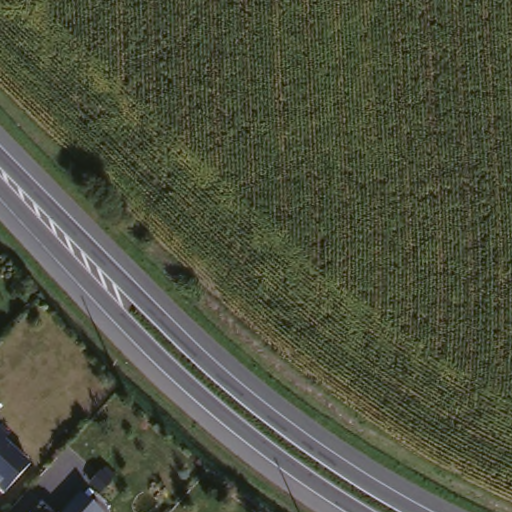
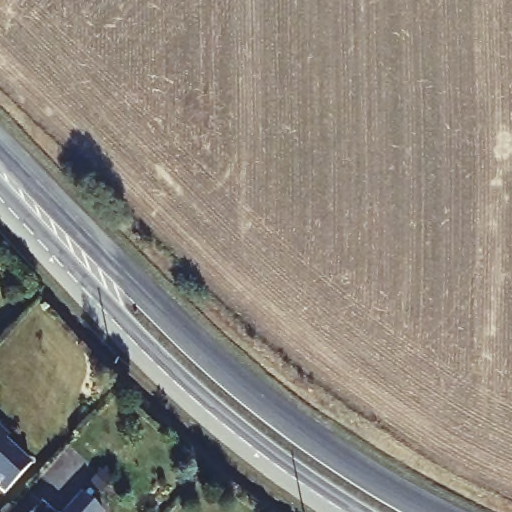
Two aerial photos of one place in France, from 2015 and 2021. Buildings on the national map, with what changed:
unchanged [(0,483),(0,448),(17,464),(0,483)]
unchanged [(89,510),(88,512),(48,512),(67,490),(89,510)]
unchanged [(41,512),(15,512),(27,499),(41,512)]

